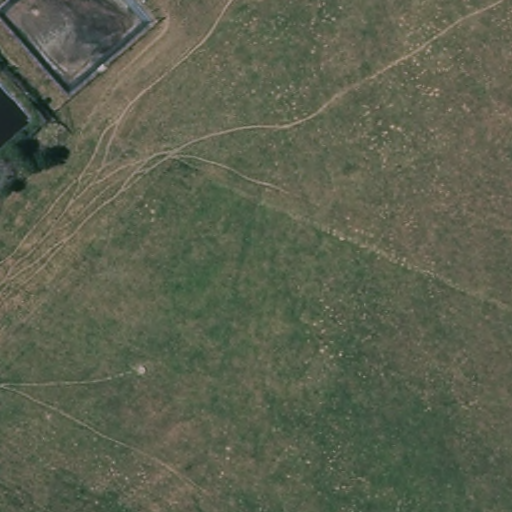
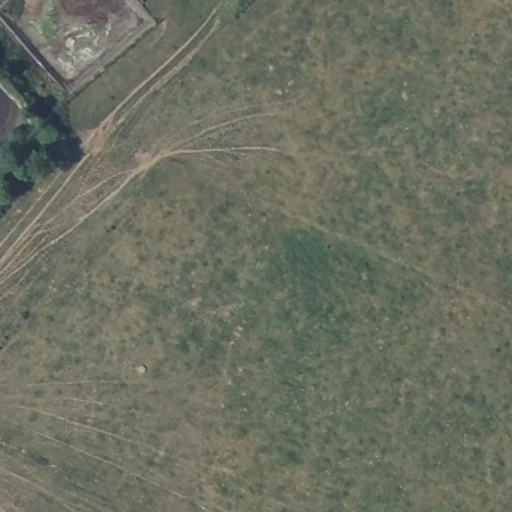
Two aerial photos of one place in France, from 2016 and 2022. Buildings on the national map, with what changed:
[]

